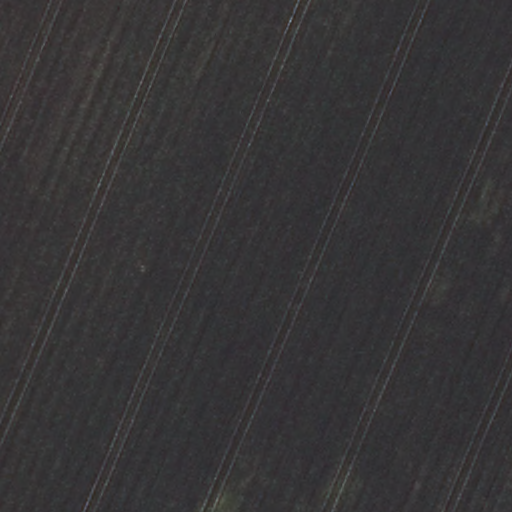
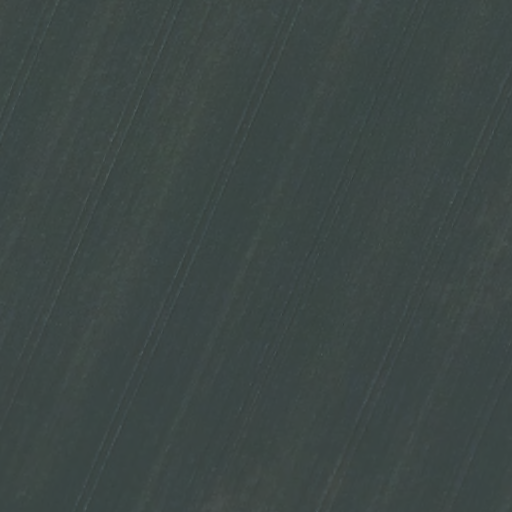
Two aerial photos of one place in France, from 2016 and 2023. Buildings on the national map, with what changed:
[]

